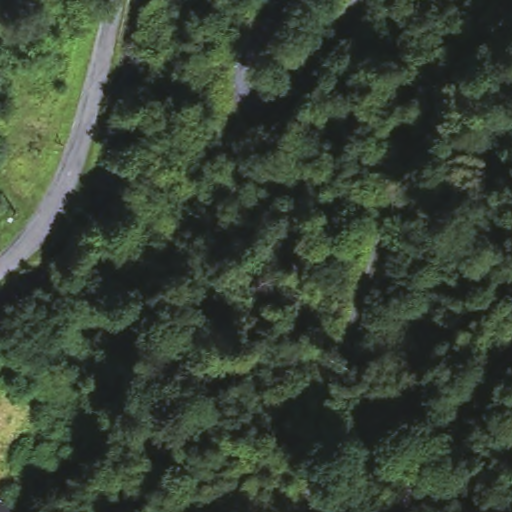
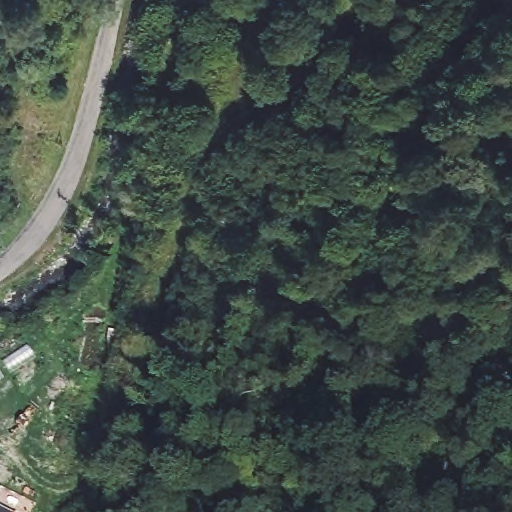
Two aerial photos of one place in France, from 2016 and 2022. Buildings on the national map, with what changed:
unchanged [(0,512),(0,504),(22,512),(0,512)]

